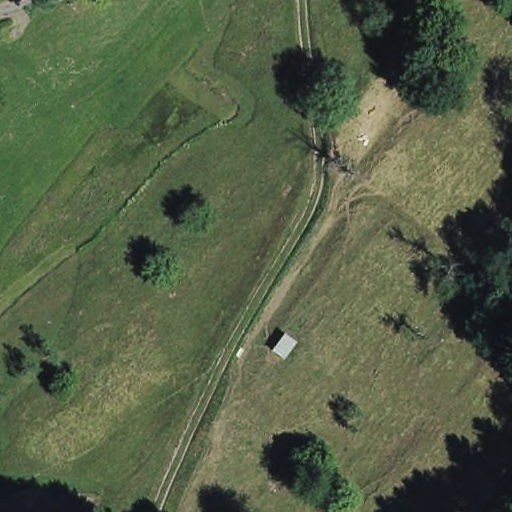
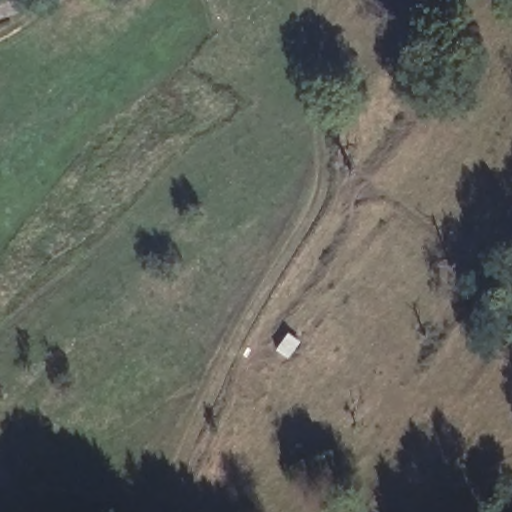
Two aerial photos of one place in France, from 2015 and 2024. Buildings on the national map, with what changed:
unchanged [(297,345),(289,363),(272,349),(283,337),(297,345)]

